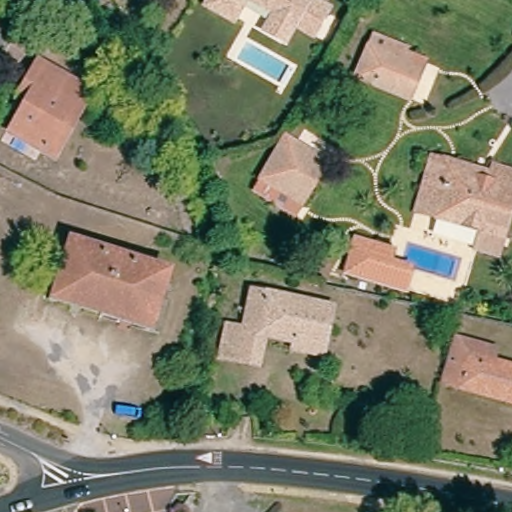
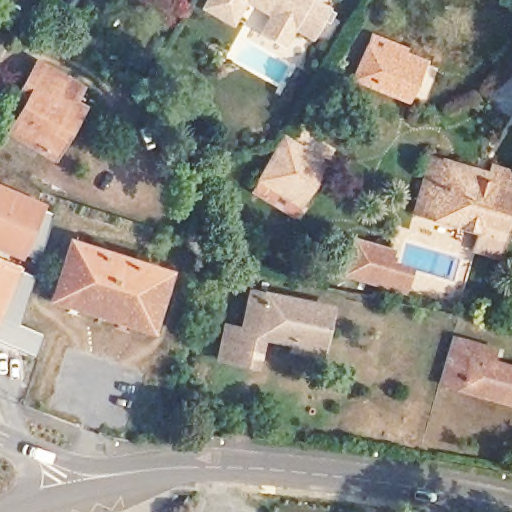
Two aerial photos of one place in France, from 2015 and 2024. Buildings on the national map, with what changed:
unchanged [(210,10),(205,8),(206,6),(209,0),(243,0),(231,22),(210,10)]
unchanged [(271,20),(274,15),(248,0),(309,0),(326,10),(311,35),(293,25),(290,30),(283,43),(264,33),(271,20)]
unchanged [(409,103),(396,98),(356,81),(373,40),(406,53),(402,63),(410,66),(422,71),(409,103)]
unchanged [(67,131),(53,155),(10,130),(26,103),(18,98),(29,80),(37,66),(77,90),(69,103),(80,110),(67,131)]
unchanged [(285,141),(328,167),(302,210),(260,184),(285,141)]
unchanged [(480,240),(416,221),(432,168),(446,172),(490,185),(492,176),(512,181),(512,214),(502,246),(497,263),(475,256),(480,240)]
new [(26,253),(23,259),(0,250),(0,183),(46,203),(44,211),(52,214),(39,258),(26,253)]
unchanged [(397,248),(393,260),(416,267),(407,295),(341,276),(353,235),(397,248)]
unchanged [(128,328),(76,312),(56,305),(61,289),(72,253),(165,283),(154,318),(149,335),(128,328)]
new [(21,266),(21,268),(34,274),(20,323),(42,332),(37,353),(0,338),(0,256),(21,266)]
unchanged [(451,303),(445,301),(433,297),(435,290),(447,293),(453,295),(451,303)]
unchanged [(305,341),(274,335),(272,345),(267,365),(230,357),(234,337),(236,326),(255,330),(262,292),(341,308),(333,346),(331,357),(302,351),(305,341)]
unchanged [(450,350),(453,338),(495,350),(491,362),(512,368),(512,401),(505,399),(460,385),(441,380),(450,350)]

